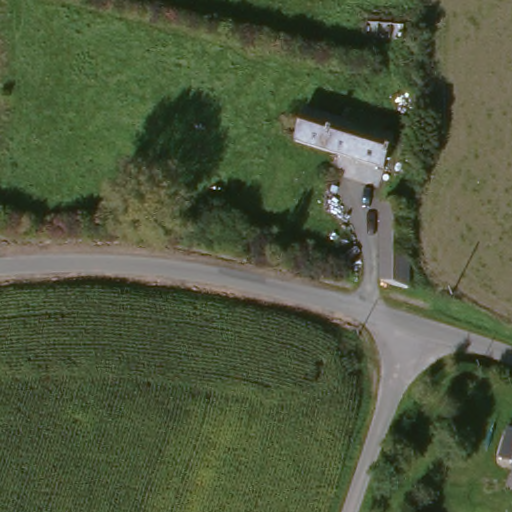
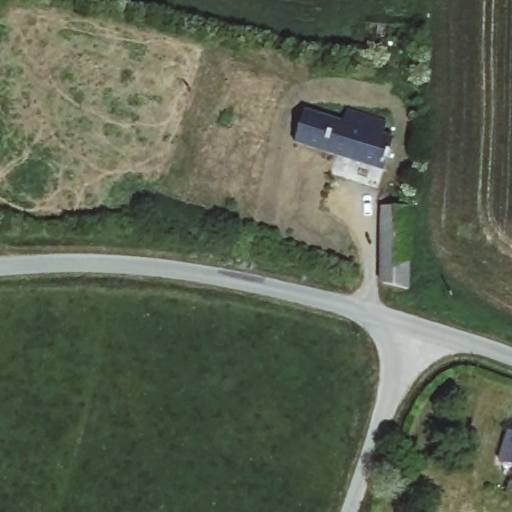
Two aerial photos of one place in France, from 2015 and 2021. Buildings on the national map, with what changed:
unchanged [(343,112),(383,124),(379,137),(390,140),(378,175),(293,147),(293,142),(290,141),(273,135),(282,108),(298,113),(338,125),(343,112)]
unchanged [(375,210),(404,210),(405,293),(376,286),(375,210)]
unchanged [(512,427),(512,466),(500,461),(512,427)]

